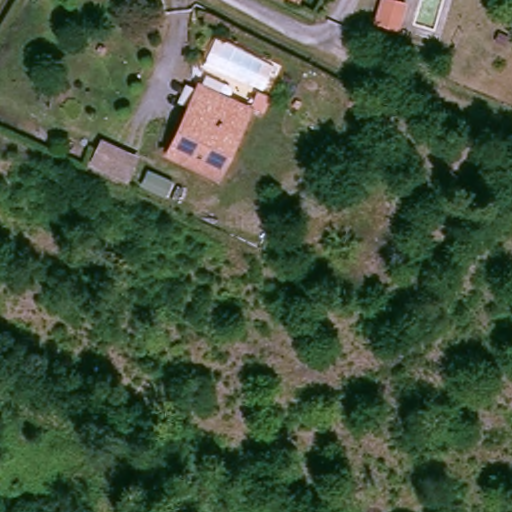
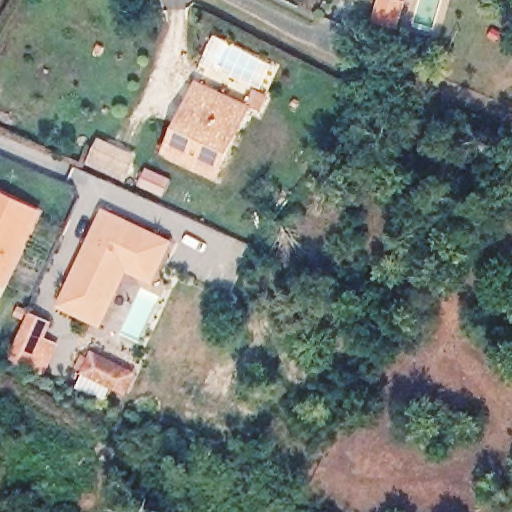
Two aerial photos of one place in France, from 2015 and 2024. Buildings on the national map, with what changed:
new [(394,0),(407,5),(398,31),(373,25),(380,0),(394,0)]
demolished [(418,5),(416,31),(396,30),(398,4),(418,5)]
unchanged [(214,176),(166,154),(176,134),(198,88),(225,100),(245,110),(214,176)]
unchanged [(127,181),(87,166),(98,139),(140,154),(127,181)]
new [(8,285),(0,281),(0,189),(45,209),(8,285)]
new [(175,241),(154,283),(130,272),(102,327),(57,307),(105,207),(175,241)]
new [(132,390),(125,390),(112,387),(114,383),(87,371),(80,362),(93,351),(142,371),(132,390)]

